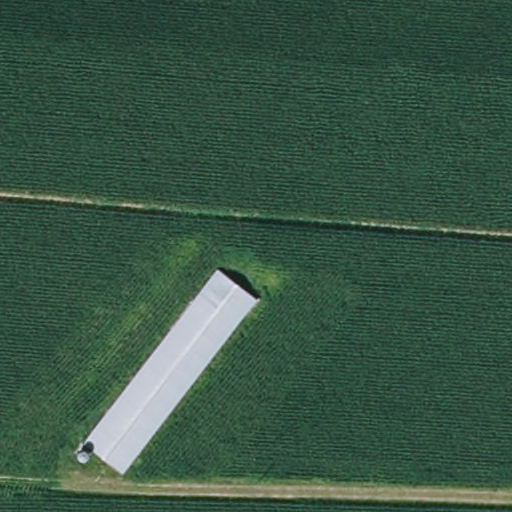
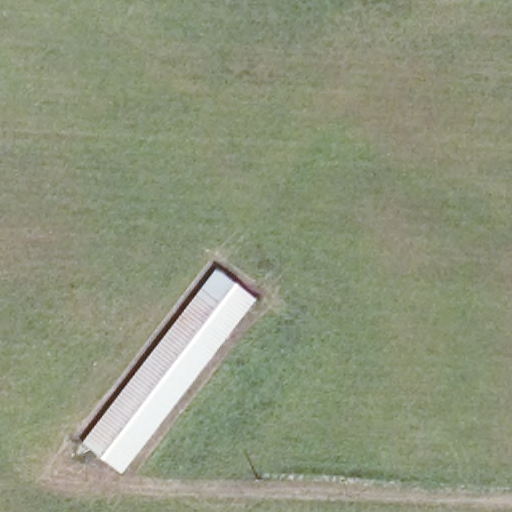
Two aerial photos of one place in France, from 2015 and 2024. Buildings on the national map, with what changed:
unchanged [(260,302),(119,473),(80,443),(221,271),(260,302)]

